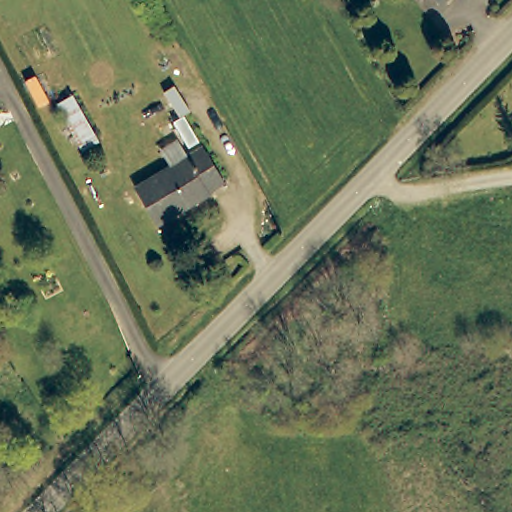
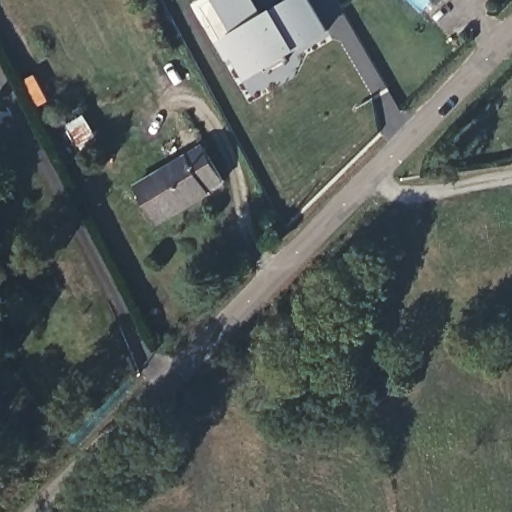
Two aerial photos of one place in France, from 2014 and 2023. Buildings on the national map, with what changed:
new [(247,81),(232,60),(229,63),(218,43),(232,34),(211,0),(255,0),(264,15),(272,11),(289,0),(310,0),(328,33),(247,81)]
unchanged [(101,144),(86,152),(52,100),(74,91),(101,144)]
unchanged [(134,191),(191,157),(201,151),(224,186),(212,195),(159,229),(134,191)]

